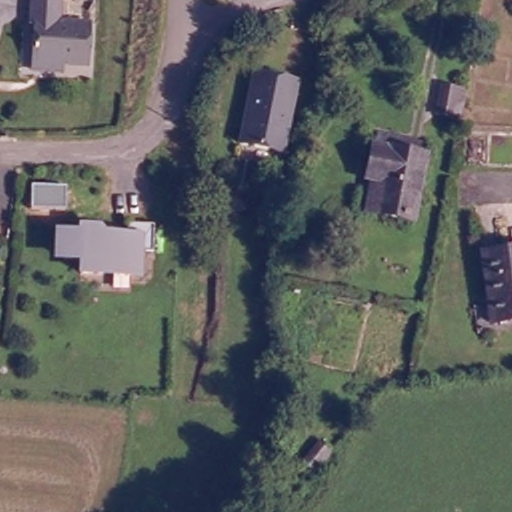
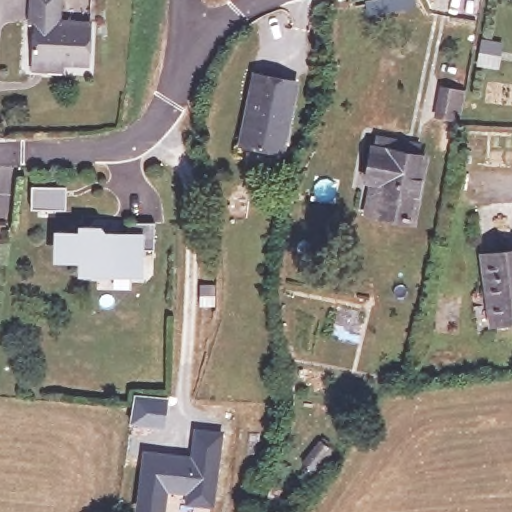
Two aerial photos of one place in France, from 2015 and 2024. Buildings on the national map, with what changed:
unchanged [(31,57),(34,23),(27,22),(29,0),(64,0),(62,24),(90,26),(86,61),(61,59),(60,71),(30,68),(31,57)]
unchanged [(463,116),(436,111),(442,80),(469,86),(463,116)]
unchanged [(299,93),(283,158),(238,147),(255,83),(299,93)]
unchanged [(415,227),(375,222),(375,218),(357,215),(368,154),(372,155),(374,141),(404,145),(419,148),(417,161),(427,164),(415,227)]
unchanged [(100,226),(99,229),(123,233),(124,222),(151,224),(146,255),(126,254),(122,275),(73,269),(74,261),(53,258),(61,229),(75,230),(77,223),(100,226)]
unchanged [(485,257),(512,253),(512,319),(492,322),(485,257)]
new [(134,393),(167,397),(163,427),(129,423),(134,393)]
new [(141,449),(188,454),(193,428),(222,432),(212,509),(178,504),(177,512),(134,512),(141,449)]
new [(319,439),(332,450),(312,474),(300,464),(319,439)]

